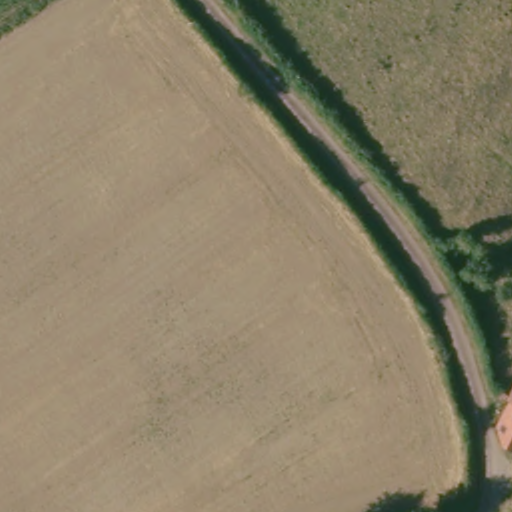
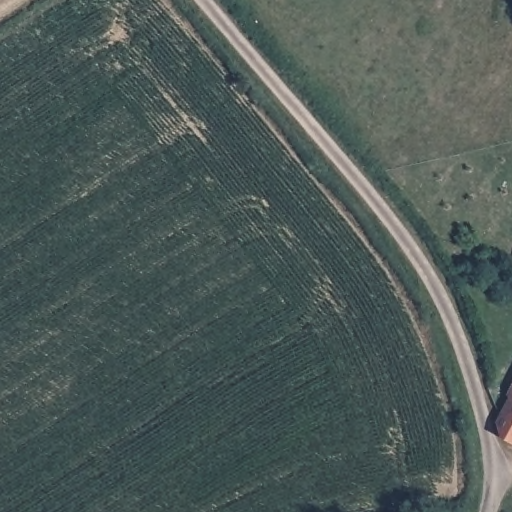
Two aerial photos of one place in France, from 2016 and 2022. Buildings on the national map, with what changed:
unchanged [(506,443),(502,422),(512,404),(512,447),(506,443)]

